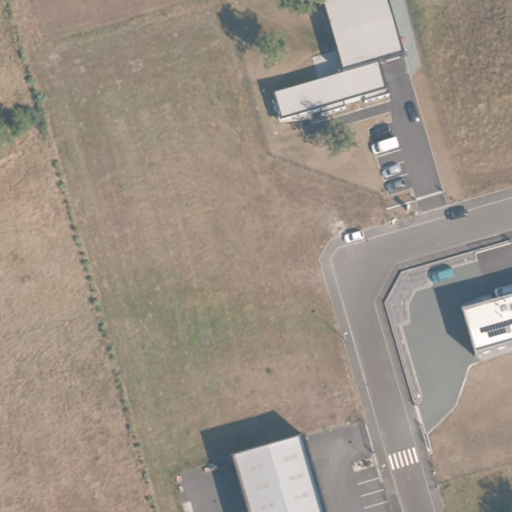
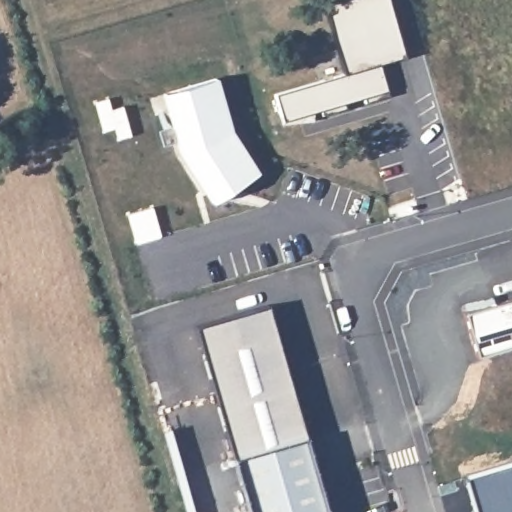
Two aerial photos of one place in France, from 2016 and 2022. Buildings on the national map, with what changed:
unchanged [(280,122),(274,97),(342,74),(323,4),(338,0),(386,0),(403,57),(377,65),(386,90),(280,122)]
new [(207,71),(222,124),(263,186),(219,216),(172,145),(155,86),(207,71)]
new [(150,207),(159,237),(135,244),(126,214),(150,207)]
unchanged [(474,355),(461,312),(512,298),(512,344),(474,355)]
new [(195,326),(267,306),(305,437),(303,440),(232,461),(195,326)]
unchanged [(324,512),(247,512),(232,461),(303,440),(324,512)]

